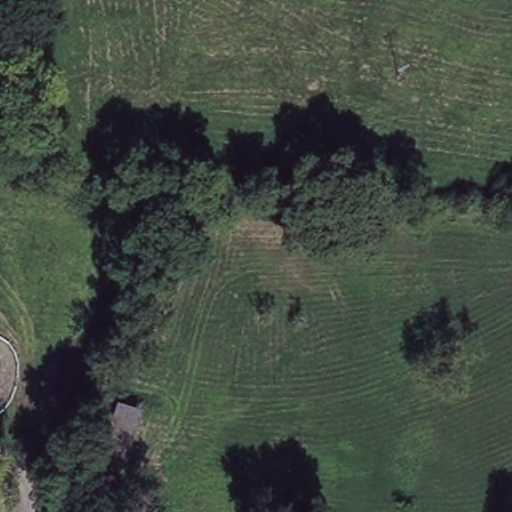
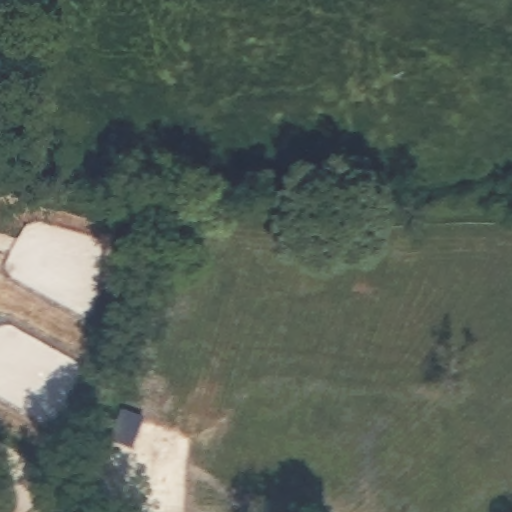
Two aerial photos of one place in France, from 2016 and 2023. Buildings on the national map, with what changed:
unchanged [(135,420),(125,461),(103,455),(115,415),(135,420)]

